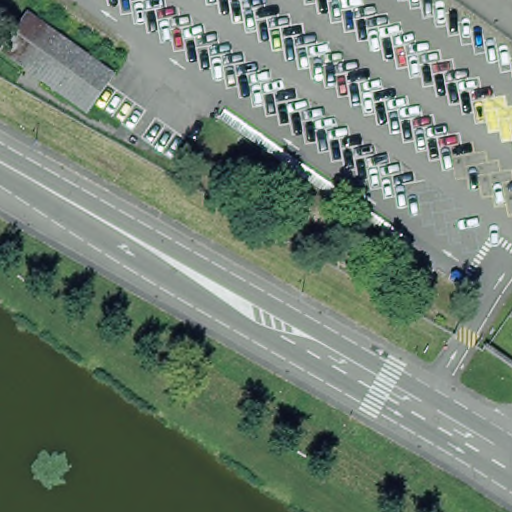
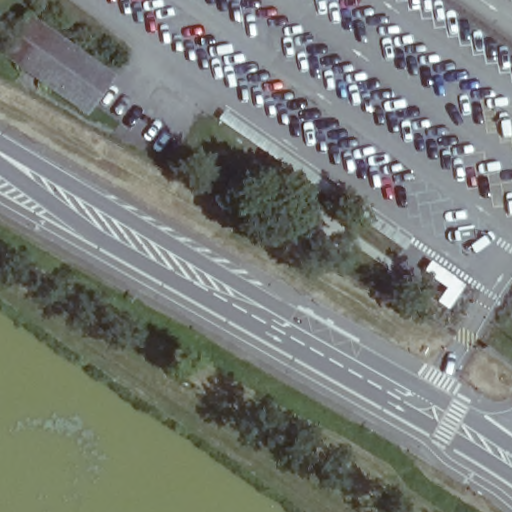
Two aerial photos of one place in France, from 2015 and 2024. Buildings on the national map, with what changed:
unchanged [(107,78),(83,113),(0,55),(0,47),(21,17),(107,78)]

